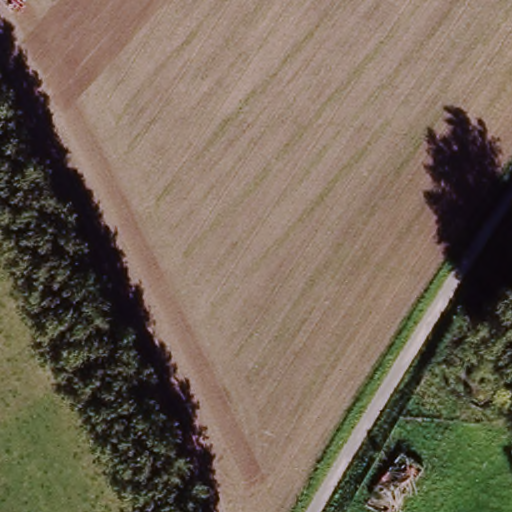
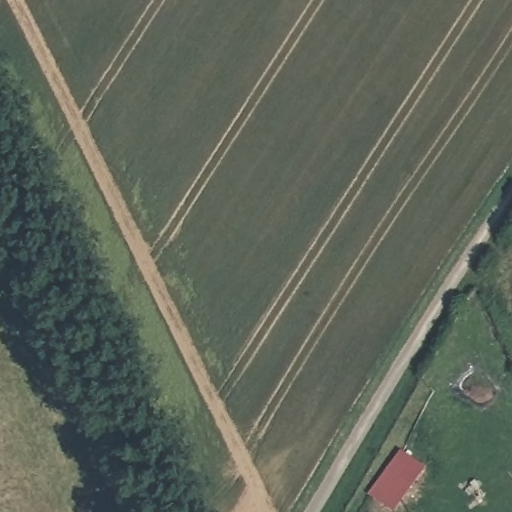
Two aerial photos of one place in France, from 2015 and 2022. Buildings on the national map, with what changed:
new [(393,447),(421,466),(390,509),(366,491),(393,447)]
demolished [(382,499),(405,459),(425,471),(402,511),(382,499)]

